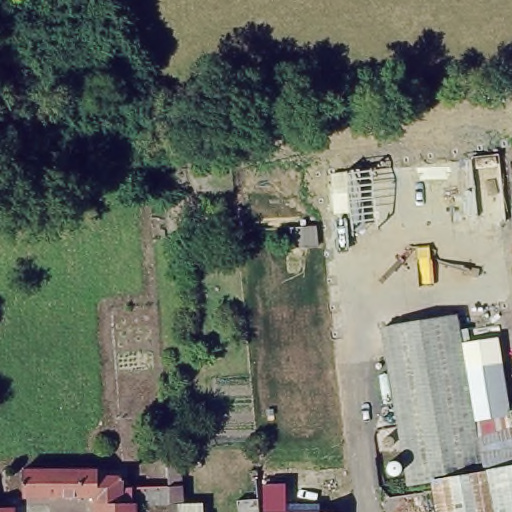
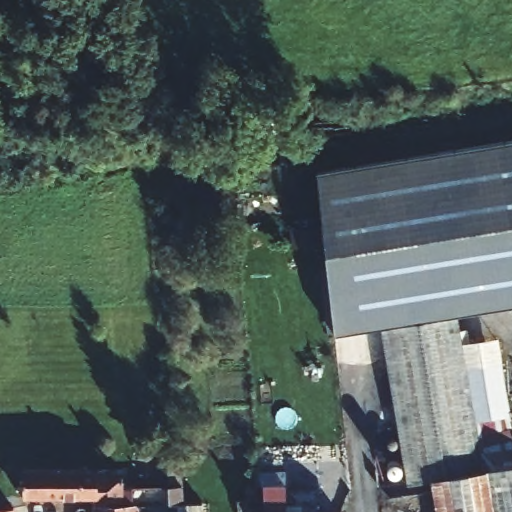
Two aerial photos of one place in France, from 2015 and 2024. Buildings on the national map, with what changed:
new [(333,334),(317,172),(512,140),(512,306),(455,316),(378,327),(333,334)]
demolished [(485,160),(490,220),(363,229),(362,206),(335,210),(332,182),(330,171),(485,160)]
new [(293,247),(291,229),(315,226),(317,245),(293,247)]
unchanged [(398,482),(378,327),(455,316),(462,360),(479,473),(487,472),(507,468),(511,468),(512,475),(512,512),(431,512),(427,483),(398,482)]
unchanged [(512,423),(512,468),(511,468),(479,473),(460,346),(498,338),(512,423)]
unchanged [(92,474),(95,474),(118,475),(118,492),(169,492),(170,512),(94,512),(93,496),(22,493),(22,485),(22,466),(90,467),(92,474)]
unchanged [(512,475),(511,468),(512,468),(512,475)]
unchanged [(180,512),(170,512),(169,492),(168,470),(177,470),(180,512)]
unchanged [(256,470),(275,470),(283,512),(260,512),(257,475),(256,470)]
demolished [(257,475),(260,512),(245,512),(242,477),(257,475)]
unchanged [(16,510),(16,512),(0,512),(0,508),(16,510)]
unchanged [(338,512),(326,512),(337,511),(338,512)]

